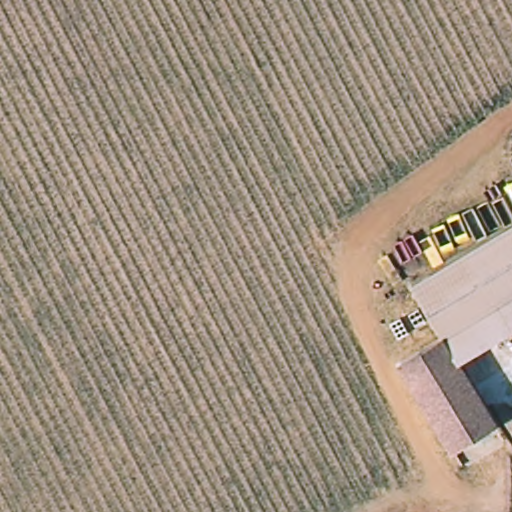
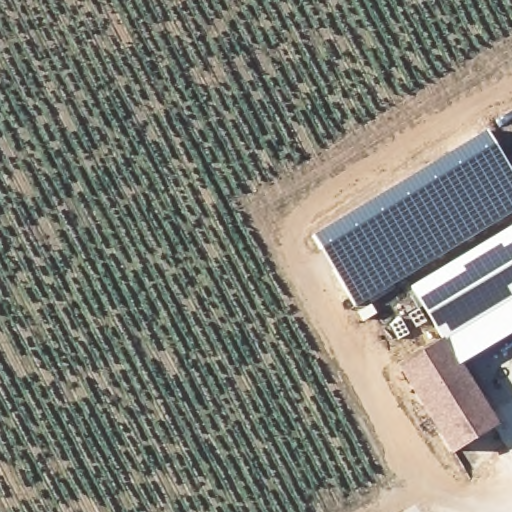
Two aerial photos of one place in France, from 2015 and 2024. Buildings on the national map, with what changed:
new [(485,130),(512,163),(512,212),(355,308),(312,235),(485,130)]
unchanged [(411,286),(512,225),(512,333),(458,364),(411,286)]
unchanged [(496,425),(452,453),(400,364),(442,337),(458,364),(496,425)]

